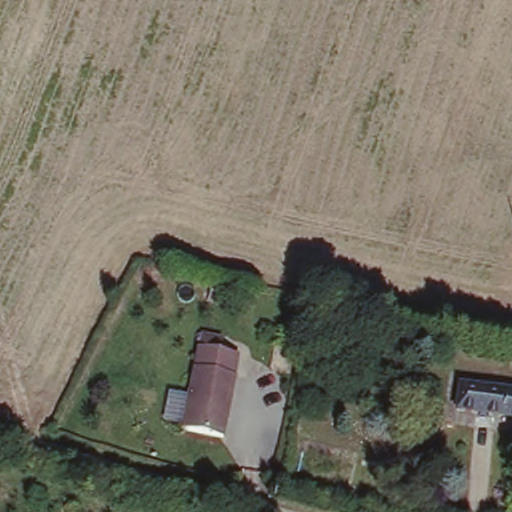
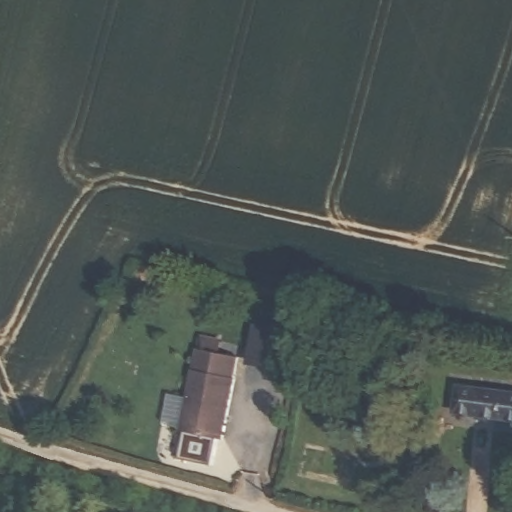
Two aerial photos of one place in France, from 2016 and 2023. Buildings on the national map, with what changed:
unchanged [(200,347),(240,356),(235,377),(236,378),(223,435),(181,426),(195,368),(200,347)]
unchanged [(512,414),(456,408),(460,382),(512,388),(512,414)]

